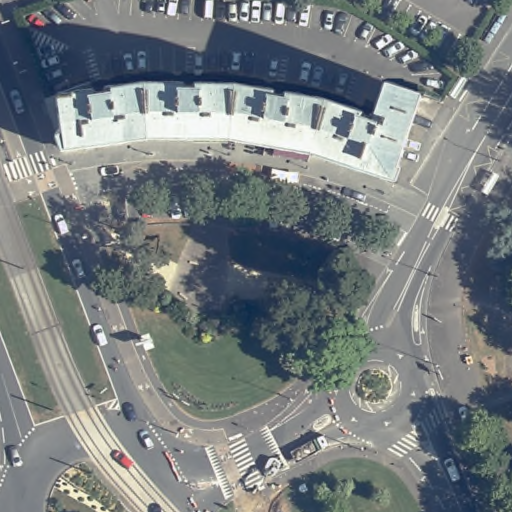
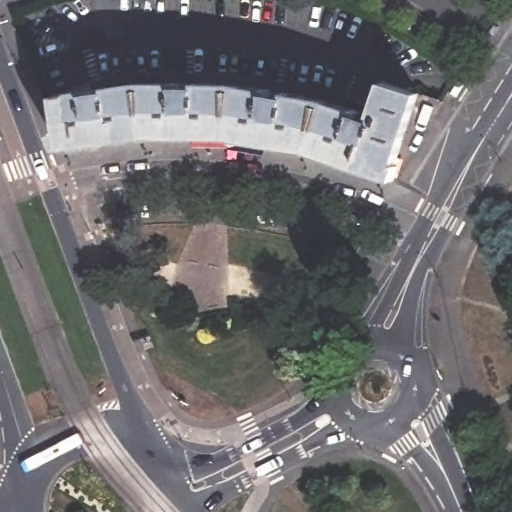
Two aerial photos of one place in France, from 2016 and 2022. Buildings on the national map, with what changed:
unchanged [(332,99),(382,115),(385,107),(361,99),(371,73),(394,81),(428,93),(401,177),(321,151),(332,99)]
unchanged [(75,149),(56,99),(99,83),(101,90),(153,82),(158,136),(75,149)]
unchanged [(153,82),(243,84),(240,137),(158,136),(153,82)]
unchanged [(240,137),(243,84),(332,99),(321,151),(240,137)]

